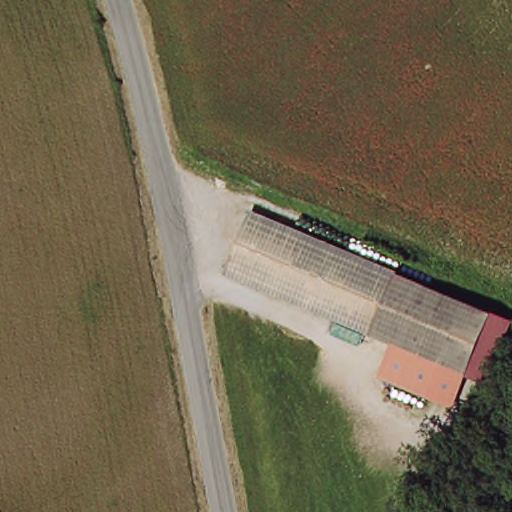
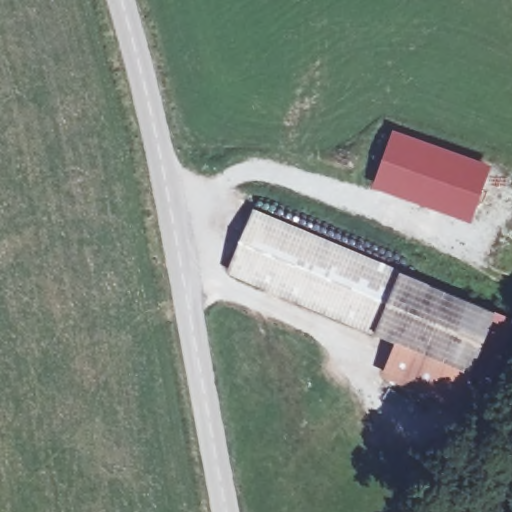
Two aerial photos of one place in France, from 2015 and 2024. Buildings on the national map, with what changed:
new [(373,187),(395,130),(492,165),(471,222),(373,187)]
unchanged [(224,264),(250,206),(512,320),(485,380),(463,370),(393,339),(224,264)]
unchanged [(393,339),(463,370),(449,400),(395,377),(380,370),(385,358),(393,339)]

